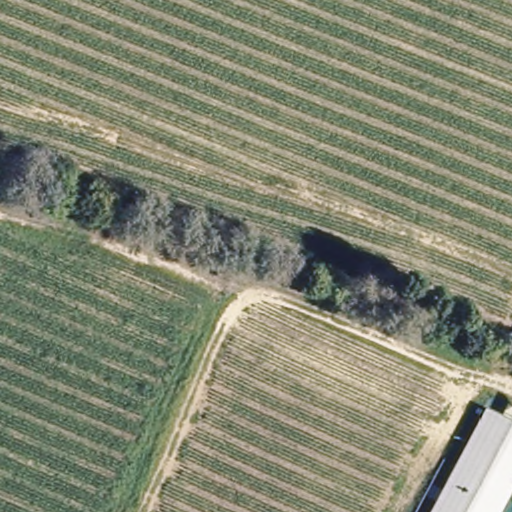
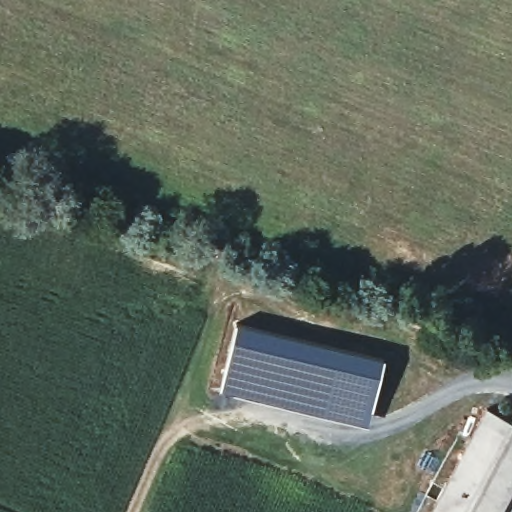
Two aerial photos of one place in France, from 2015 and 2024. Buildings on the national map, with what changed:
new [(236,318),(384,354),(372,404),(224,369),(236,318)]
new [(224,369),(372,404),(369,419),(220,383),(224,369)]
unchanged [(512,485),(497,512),(428,512),(485,407),(512,422),(512,485)]

